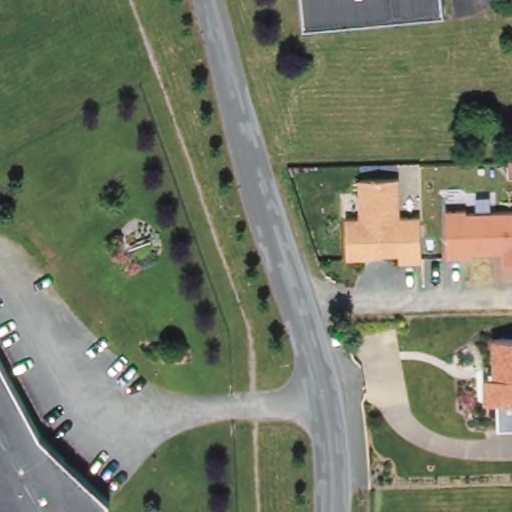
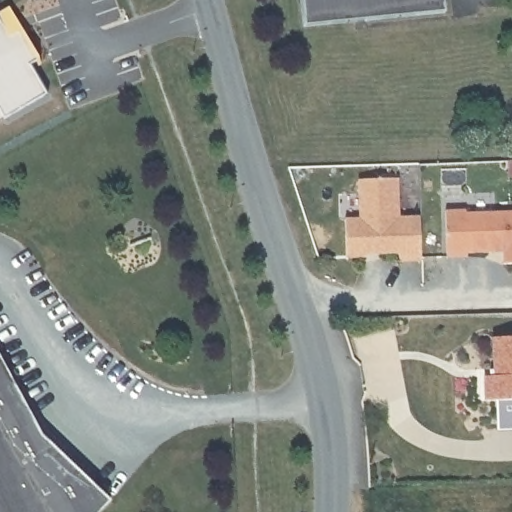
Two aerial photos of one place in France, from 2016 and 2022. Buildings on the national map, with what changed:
unchanged [(304,27),(301,0),(444,0),(445,13),(304,27)]
new [(9,36),(20,30),(37,61),(30,66),(46,95),(4,119),(0,121),(0,21),(9,36)]
unchanged [(401,181),(401,220),(421,219),(423,266),(400,266),(400,258),(368,260),(367,264),(344,263),(345,222),(359,220),(358,183),(401,181)]
unchanged [(508,251),(472,252),(472,256),(452,257),(450,210),(471,209),(471,212),(512,211),(512,263),(508,263),(508,251)]
unchanged [(489,372),(500,372),(498,334),(512,333),(512,395),(490,396),(489,372)]
unchanged [(42,434),(114,498),(100,512),(0,512),(0,352),(42,434)]
new [(512,395),(512,429),(497,430),(495,396),(512,395)]

